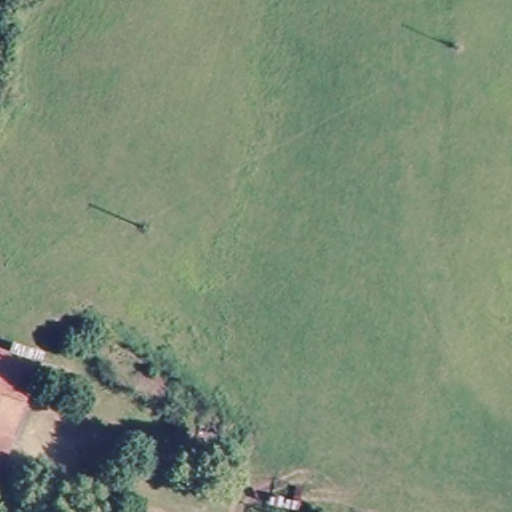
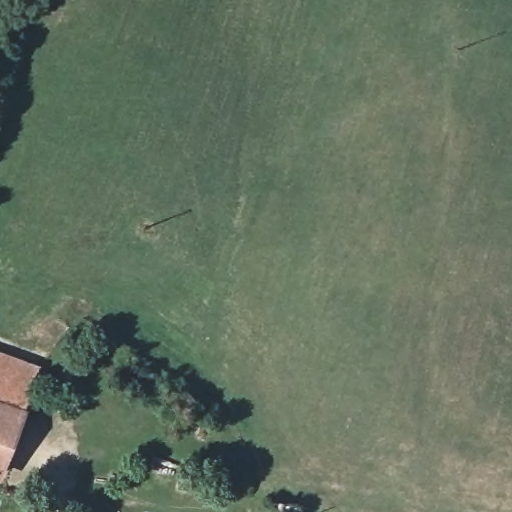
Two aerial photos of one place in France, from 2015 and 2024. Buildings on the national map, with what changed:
unchanged [(0,357),(39,372),(26,408),(0,397),(0,357)]
unchanged [(4,472),(0,470),(0,397),(26,408),(4,472)]

